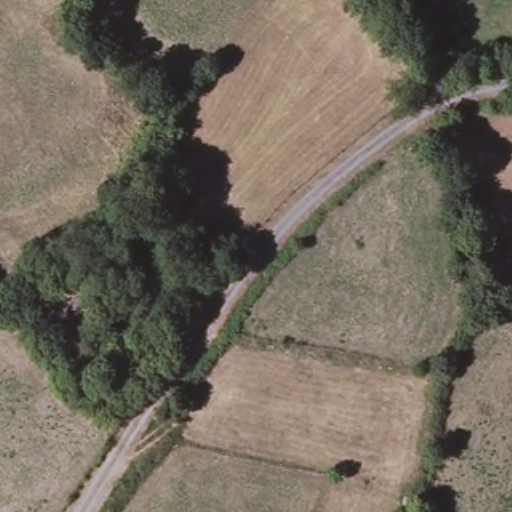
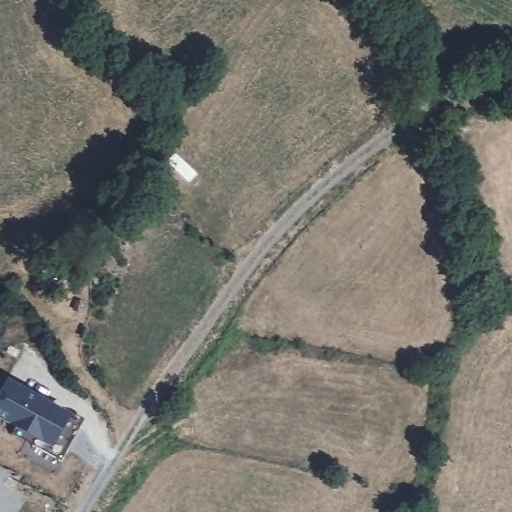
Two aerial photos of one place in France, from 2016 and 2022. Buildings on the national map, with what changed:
new [(66,464),(37,448),(16,437),(20,428),(0,417),(0,407),(12,385),(60,412),(72,418),(87,426),(66,464)]

